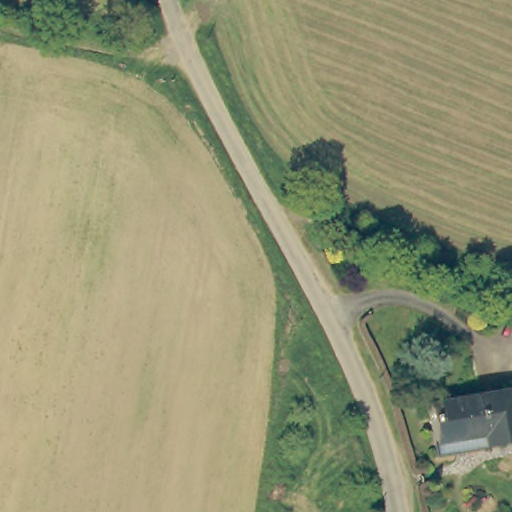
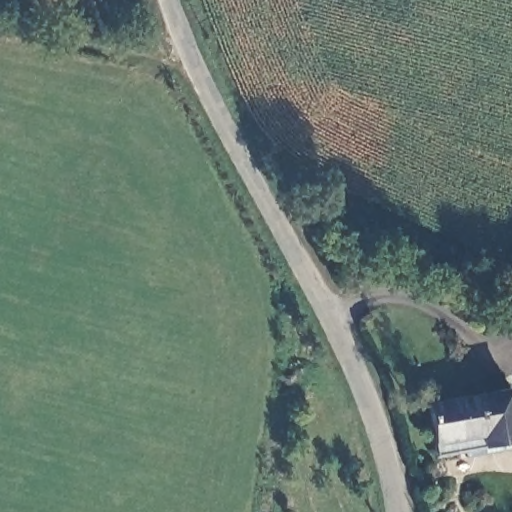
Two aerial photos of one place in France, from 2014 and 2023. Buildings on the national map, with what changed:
unchanged [(512,431),(512,443),(478,448),(475,433),(430,439),(424,399),(506,387),(512,431)]

